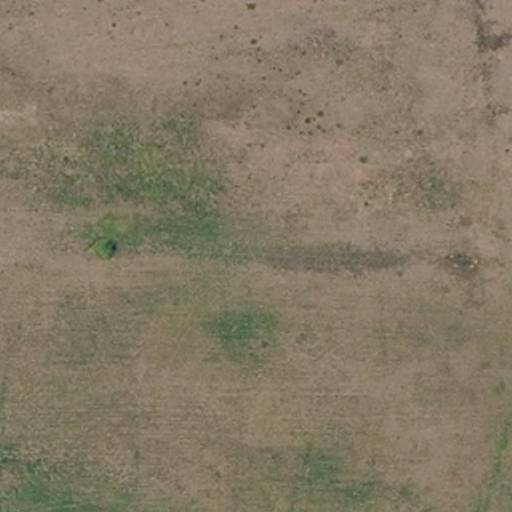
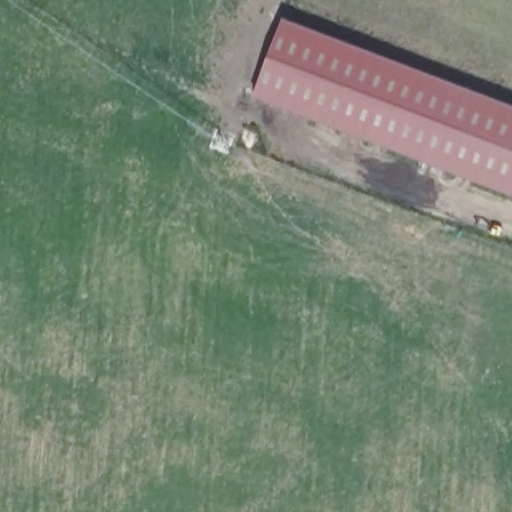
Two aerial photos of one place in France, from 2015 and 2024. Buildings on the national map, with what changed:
new [(256,92),(287,17),(512,102),(512,190),(256,92)]

